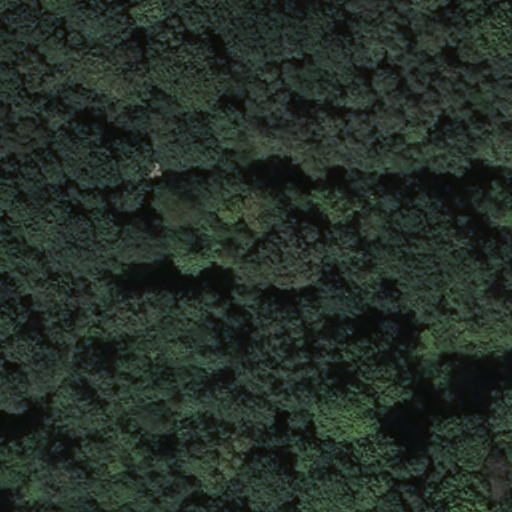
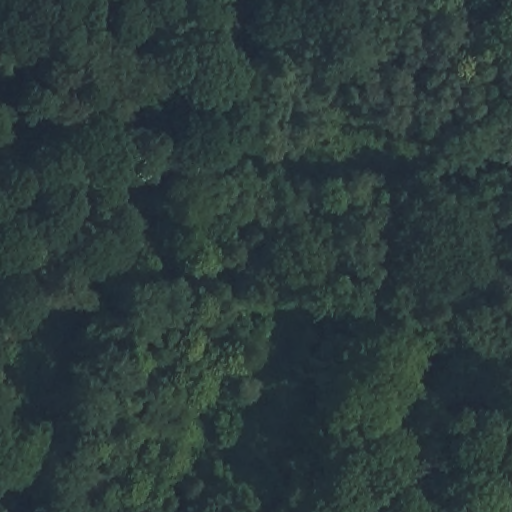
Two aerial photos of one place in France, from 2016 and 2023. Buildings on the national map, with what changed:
unchanged [(142,249),(153,221),(175,228),(164,256),(142,249)]

